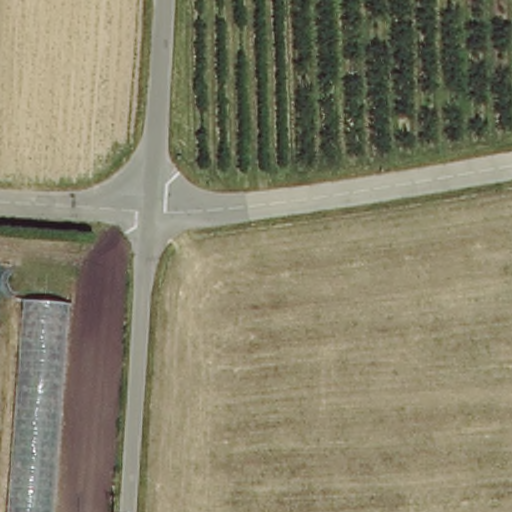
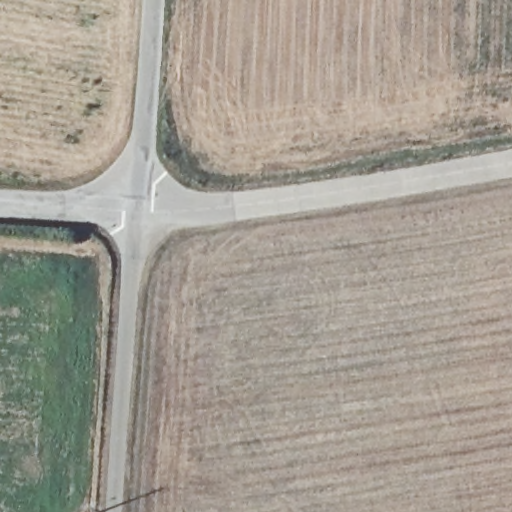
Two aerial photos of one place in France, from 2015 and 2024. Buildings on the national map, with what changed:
demolished [(60,303),(45,512),(0,512),(0,465),(14,297),(60,303)]

